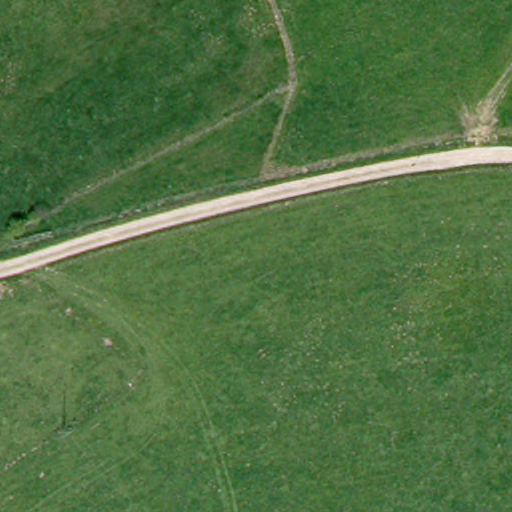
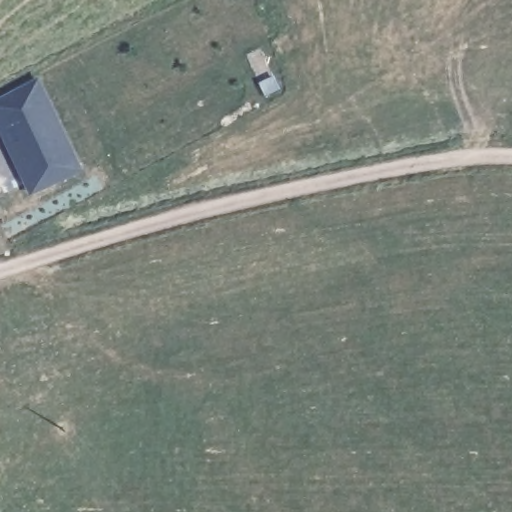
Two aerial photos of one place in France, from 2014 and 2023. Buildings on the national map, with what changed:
new [(81,169),(30,193),(0,134),(0,96),(37,76),(81,169)]

